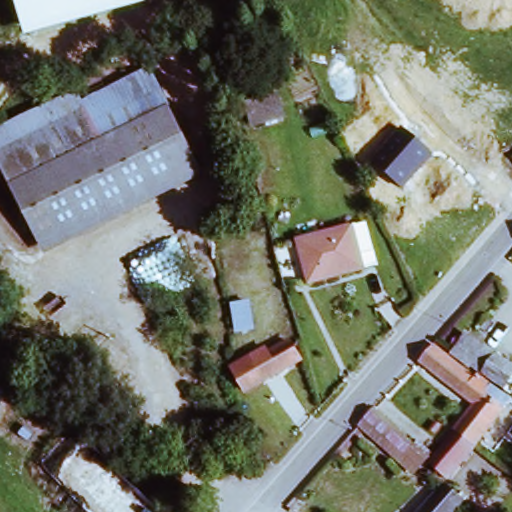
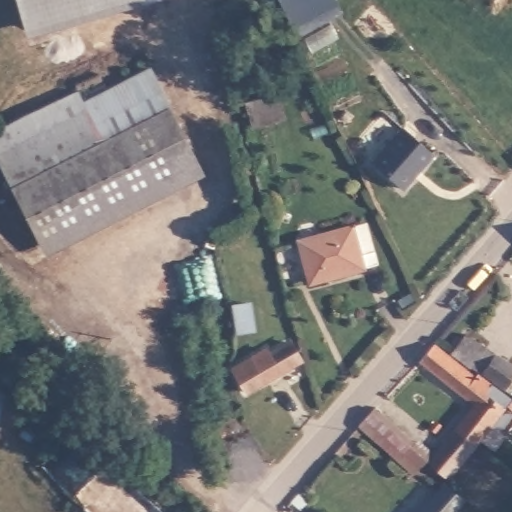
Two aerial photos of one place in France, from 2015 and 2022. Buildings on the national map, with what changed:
unchanged [(146,3),(26,36),(16,0),(145,0),(146,3)]
new [(289,0),(336,0),(341,11),(295,32),(282,3),(289,0)]
unchanged [(0,145),(122,76),(152,125),(16,201),(0,174),(0,145)]
unchanged [(269,108),(285,104),(289,121),(261,128),(254,101),(267,99),(269,108)]
unchanged [(172,115),(205,172),(49,258),(16,201),(152,125),(172,115)]
unchanged [(405,189),(375,165),(402,130),(434,155),(405,189)]
unchanged [(343,268),(329,234),(362,220),(377,258),(343,268)]
unchanged [(310,282),(297,245),(329,234),(343,268),(310,282)]
unchanged [(469,330),(512,364),(512,398),(494,382),(490,387),(455,357),(450,354),(469,330)]
unchanged [(300,360),(245,391),(234,371),(248,362),(245,357),(271,340),(276,346),(292,337),(300,360)]
unchanged [(417,355),(431,339),(490,387),(477,404),(417,355)]
unchanged [(477,404),(490,387),(494,382),(512,398),(512,411),(480,440),(460,425),(477,404)]
unchanged [(427,462),(417,475),(358,425),(367,415),(427,462)]
unchanged [(453,474),(434,458),(460,425),(480,440),(453,474)]
unchanged [(472,498),(459,512),(416,512),(447,478),(472,498)]

